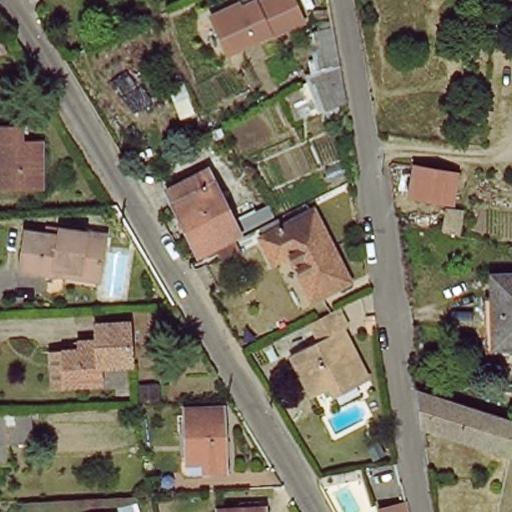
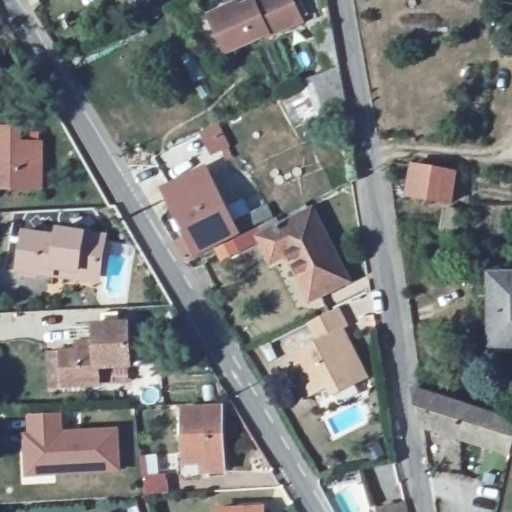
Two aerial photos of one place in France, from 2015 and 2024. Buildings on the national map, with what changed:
unchanged [(256,12),(286,0),(295,0),(308,30),(227,64),(209,24),(251,4),(256,12)]
unchanged [(334,32),(341,71),(325,74),(318,35),(334,32)]
unchanged [(342,119),(323,126),(321,121),(320,119),(295,129),(281,100),(341,71),(341,72),(347,106),(347,108),(339,111),(339,112),(342,119)]
unchanged [(181,120),(174,102),(188,95),(196,114),(181,120)]
unchanged [(0,190),(0,128),(27,128),(27,142),(48,142),(48,190),(0,190)]
unchanged [(453,199),(409,191),(413,160),(457,169),(453,199)]
unchanged [(280,221),(245,239),(202,261),(178,211),(179,210),(172,196),(176,194),(209,179),(214,175),(221,190),(240,227),(274,210),(280,221)]
unchanged [(459,230),(446,227),(443,226),(447,204),(463,206),(459,230)]
unchanged [(317,306),(294,260),(278,267),(266,243),(269,241),(264,234),(280,225),(284,224),(288,231),(311,220),(319,215),(334,246),(355,286),(317,306)]
unchanged [(101,275),(56,269),(55,276),(20,271),(25,234),(58,237),(60,230),(106,237),(101,275)]
unchanged [(228,265),(223,255),(239,246),(244,257),(228,265)]
unchanged [(221,293),(210,271),(219,268),(229,285),(221,293)]
unchanged [(492,276),(512,276),(512,347),(493,347),(492,276)]
unchanged [(340,397),(335,388),(333,390),(318,397),(296,355),(325,340),(316,323),(343,310),(353,328),(348,331),(351,336),(362,357),(373,380),(362,386),(340,397)]
unchanged [(56,353),(69,353),(84,351),(83,345),(100,343),(99,327),(133,325),(136,367),(105,369),(107,386),(71,387),(59,388),(56,353)]
unchanged [(271,363),(265,352),(273,347),(279,359),(271,363)]
unchanged [(161,406),(140,408),(139,386),(160,385),(161,406)]
unchanged [(417,385),(512,417),(512,450),(423,421),(417,385)]
unchanged [(203,472),(203,463),(186,465),(184,410),(224,409),(226,471),(203,472)]
new [(62,412),(63,428),(119,426),(122,471),(21,473),(19,413),(62,412)]
demolished [(9,446),(12,466),(0,468),(0,416),(31,415),(34,445),(9,446)]
unchanged [(124,504),(143,498),(146,512),(126,512),(124,504)]
unchanged [(263,510),(263,512),(218,512),(263,510)]

